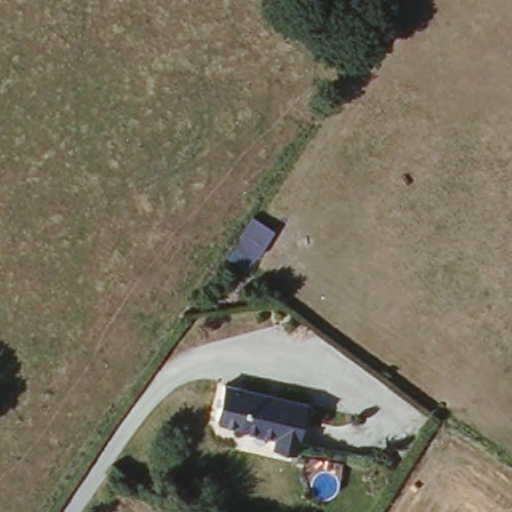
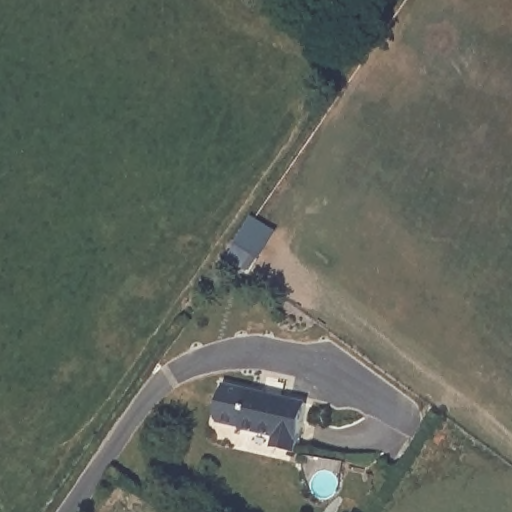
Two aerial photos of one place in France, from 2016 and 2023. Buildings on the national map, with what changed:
unchanged [(233,246),(250,219),(256,223),(273,234),(256,261),(237,248),(233,246)]
unchanged [(246,383),(305,398),(294,450),(269,443),(271,431),(236,423),(246,383)]

